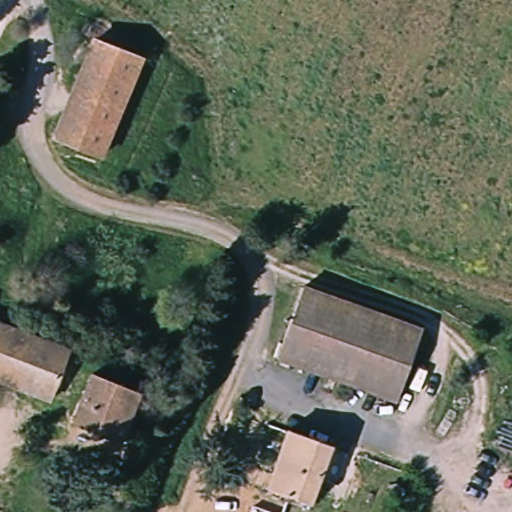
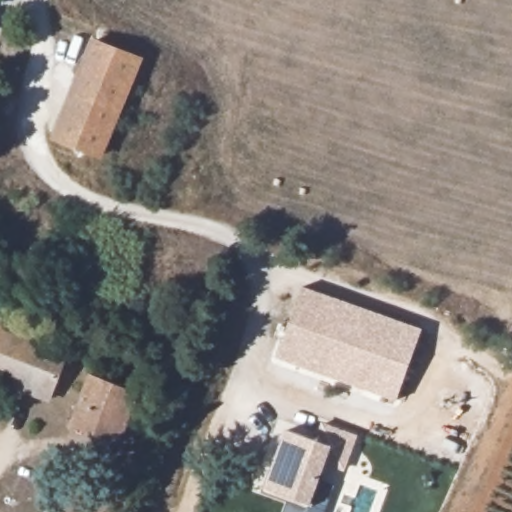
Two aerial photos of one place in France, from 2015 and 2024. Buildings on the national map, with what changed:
unchanged [(100,149),(54,131),(95,35),(140,53),(100,149)]
unchanged [(400,404),(279,360),(305,288),(426,333),(400,404)]
unchanged [(0,379),(0,329),(65,352),(48,397),(0,379)]
unchanged [(120,447),(71,428),(91,377),(138,394),(120,447)]
unchanged [(310,508),(264,492),(288,432),(333,447),(310,508)]

